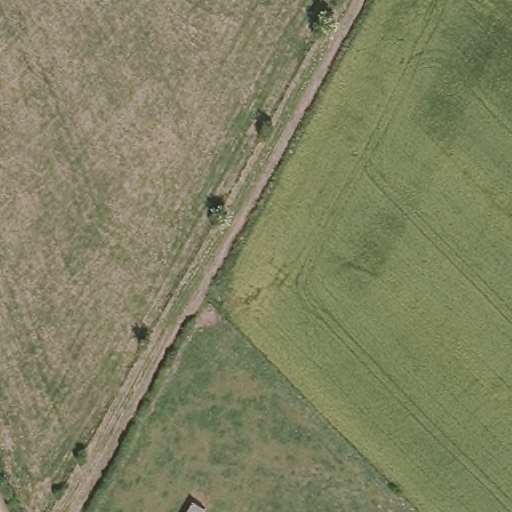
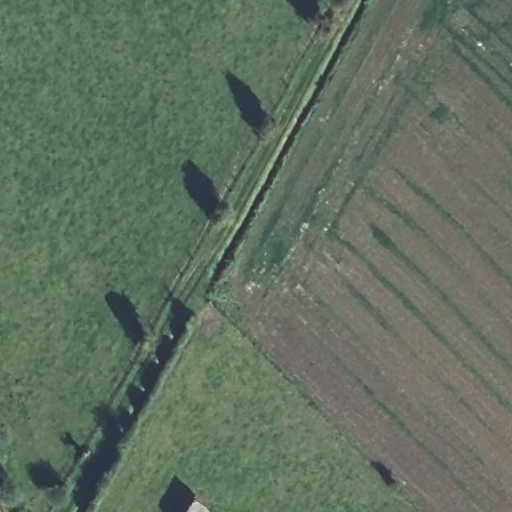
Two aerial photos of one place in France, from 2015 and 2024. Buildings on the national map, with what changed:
unchanged [(200,512),(186,512),(191,505),(200,512)]

